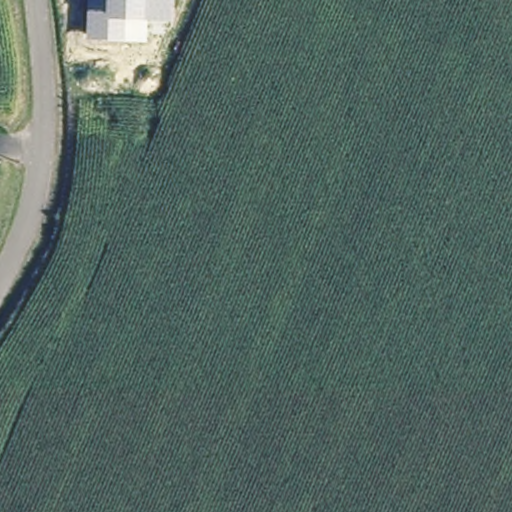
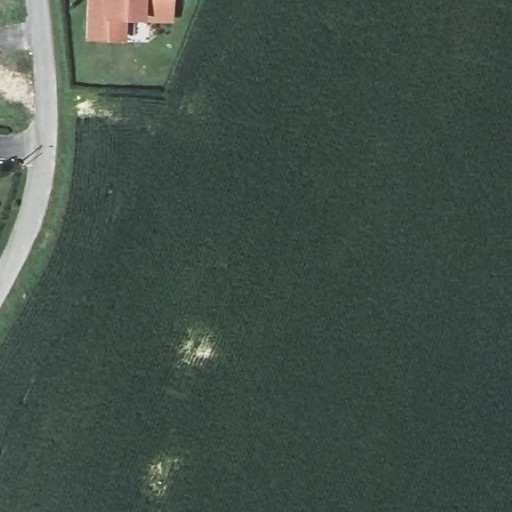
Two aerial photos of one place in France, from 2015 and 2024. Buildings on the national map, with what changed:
unchanged [(172,20),(143,20),(125,20),(125,41),(88,40),(88,0),(172,0),(172,20)]

